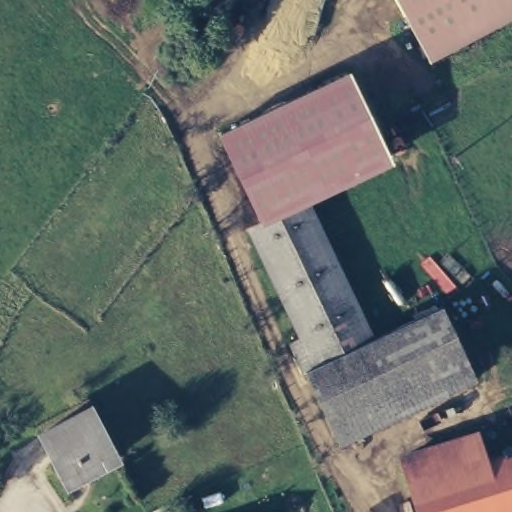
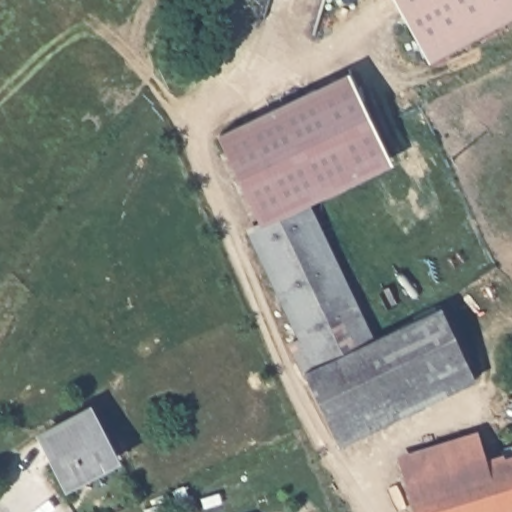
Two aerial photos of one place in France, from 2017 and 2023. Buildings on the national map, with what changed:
unchanged [(421,57),(396,0),(512,0),(512,17),(421,57)]
unchanged [(392,158),(259,223),(216,134),(346,72),(392,158)]
unchanged [(305,371),(291,342),(301,338),(251,230),(312,202),(376,340),(305,371)]
unchanged [(376,340),(445,308),(470,364),(330,426),(305,371),(376,340)]
unchanged [(84,403),(110,450),(62,477),(35,431),(84,403)]
unchanged [(512,453),(512,512),(418,512),(401,455),(483,430),(491,459),(512,453)]

